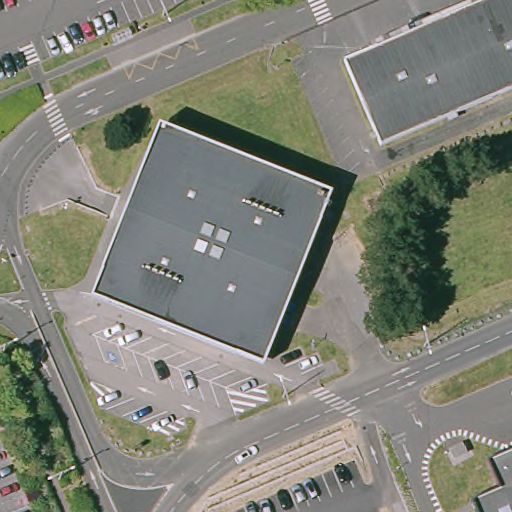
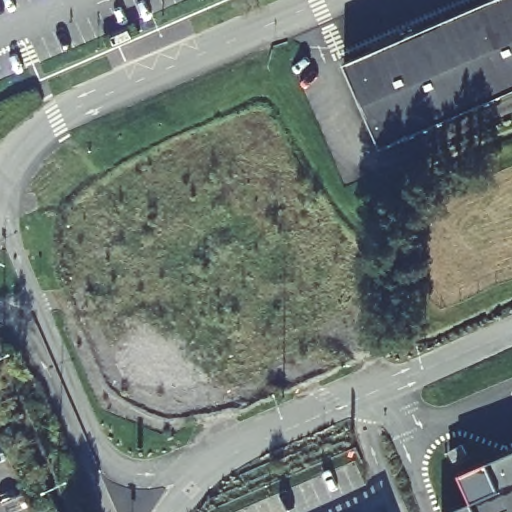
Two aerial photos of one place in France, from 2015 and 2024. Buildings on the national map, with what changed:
unchanged [(475,0),(512,0),(512,85),(475,101),(437,16),(475,0)]
unchanged [(380,143),(342,59),(437,16),(475,101),(380,143)]
new [(92,295),(157,125),(330,191),(260,363),(92,295)]
demolished [(159,145),(165,131),(327,197),(206,250),(159,145)]
demolished [(193,256),(126,286),(105,295),(99,293),(159,145),(206,250),(193,256)]
demolished [(327,197),(260,358),(252,354),(206,250),(327,197)]
demolished [(252,354),(105,295),(126,286),(193,256),(206,250),(252,354)]
unchanged [(472,501),(500,489),(488,460),(512,450),(512,512),(477,512),(472,501)]

